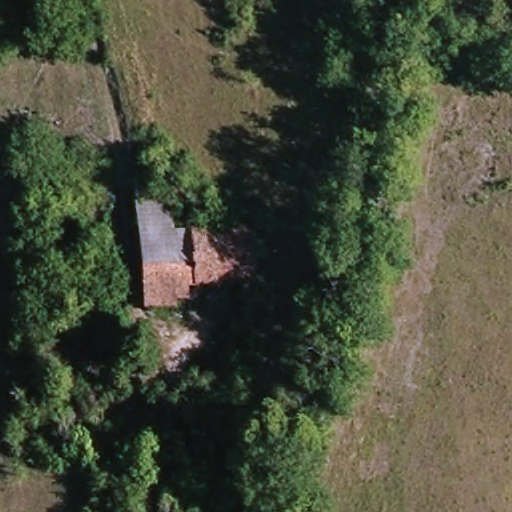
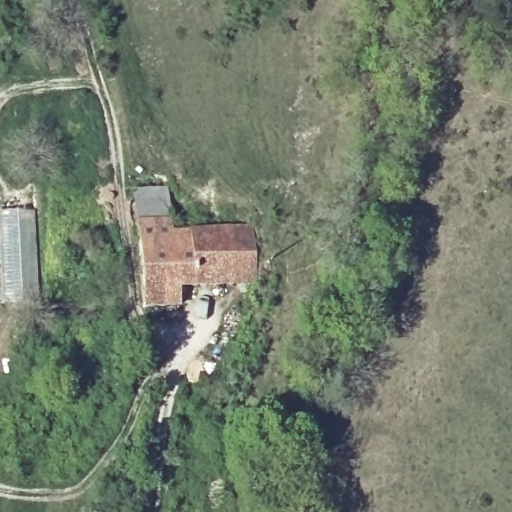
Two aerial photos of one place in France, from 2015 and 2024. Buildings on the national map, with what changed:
unchanged [(174,222),(141,226),(136,194),(170,190),(174,222)]
new [(41,302),(2,303),(0,248),(0,207),(36,206),(41,302)]
unchanged [(176,233),(238,229),(243,284),(191,290),(191,302),(182,304),(181,309),(151,310),(141,226),(174,222),(176,233)]
unchanged [(265,284),(243,284),(238,229),(262,228),(265,284)]
unchanged [(272,503),(253,507),(248,475),(268,474),(272,503)]

